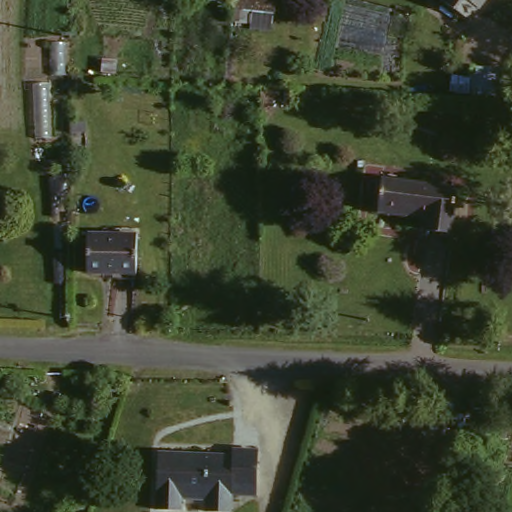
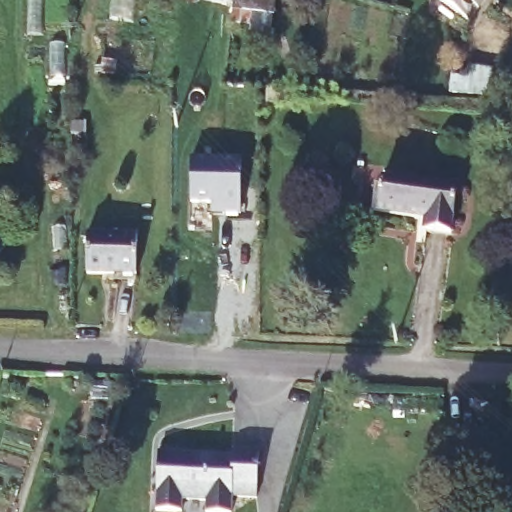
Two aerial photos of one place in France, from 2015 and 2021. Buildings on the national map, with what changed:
unchanged [(277,0),(276,18),(246,16),(245,34),(227,33),(229,6),(202,1),(202,0),(277,0)]
unchanged [(483,0),(470,19),(444,0),(483,0)]
unchanged [(503,69),(499,100),(464,97),(469,65),(503,69)]
new [(223,202),(191,202),(191,159),(241,159),(241,213),(224,213),(223,202)]
unchanged [(446,237),(429,234),(431,221),(409,217),(410,212),(378,206),(383,180),(455,193),(446,237)]
unchanged [(87,235),(135,237),(134,276),(88,274),(87,235)]
unchanged [(231,452),(234,452),(234,446),(259,447),(257,492),(233,491),(232,509),(214,508),(207,508),(208,495),(183,494),(182,507),(157,505),(160,448),(231,452)]

